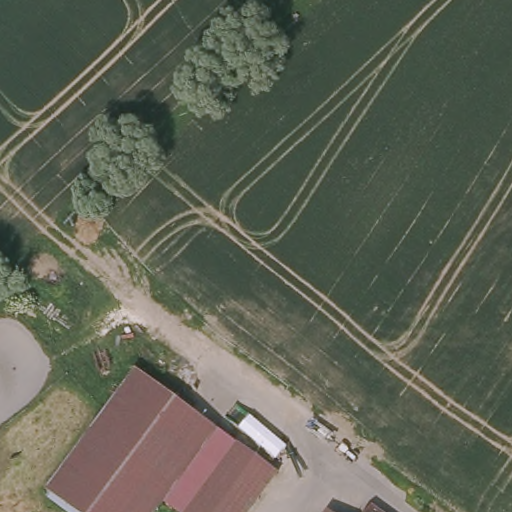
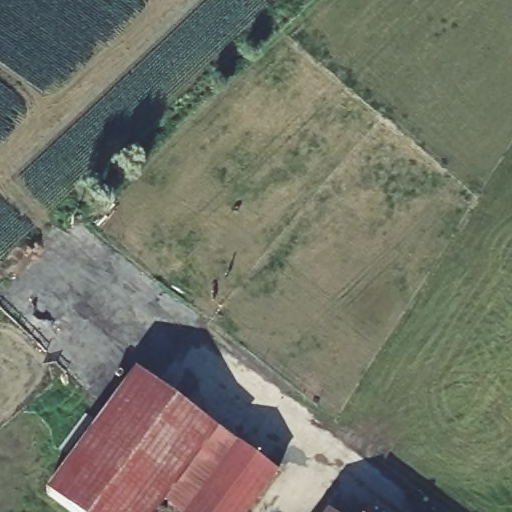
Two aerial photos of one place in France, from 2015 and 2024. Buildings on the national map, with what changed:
unchanged [(211,423),(147,512),(85,512),(47,484),(133,367),(211,423)]
unchanged [(190,510),(162,490),(205,431),(232,451),(190,510)]
unchanged [(232,450),(272,478),(248,512),(192,512),(190,510),(232,450)]
unchanged [(372,506),(380,512),(368,512),(372,506)]
unchanged [(328,510),(331,512),(327,512),(328,510)]

